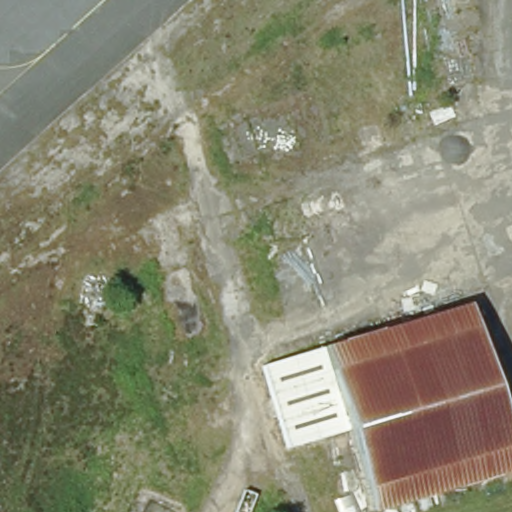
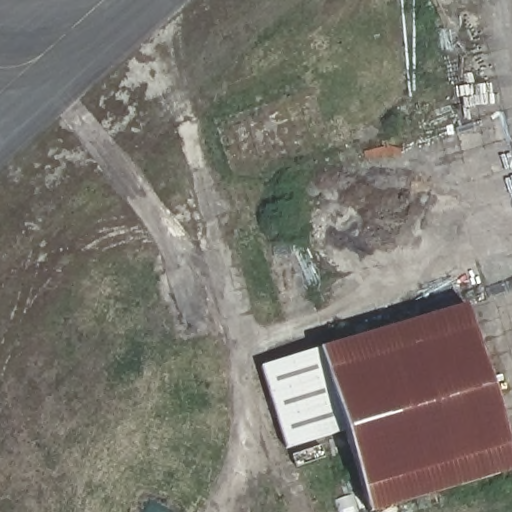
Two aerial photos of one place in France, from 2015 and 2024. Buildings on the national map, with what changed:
unchanged [(512,461),(366,504),(348,443),(301,457),(275,367),(468,309),(512,455),(512,461)]

